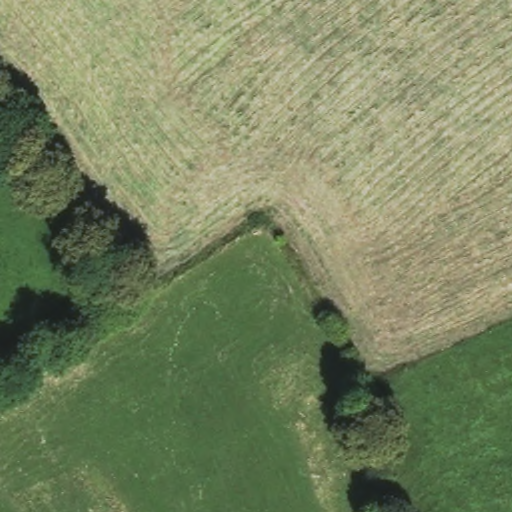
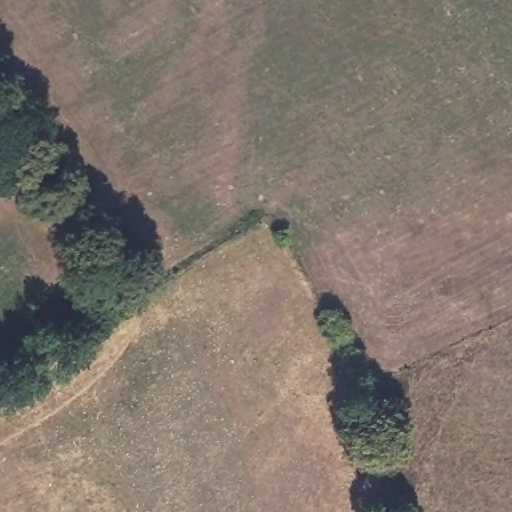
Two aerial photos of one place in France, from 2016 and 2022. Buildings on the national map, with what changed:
[]

